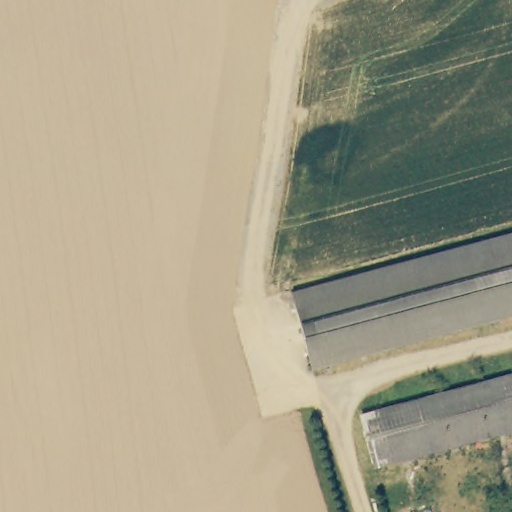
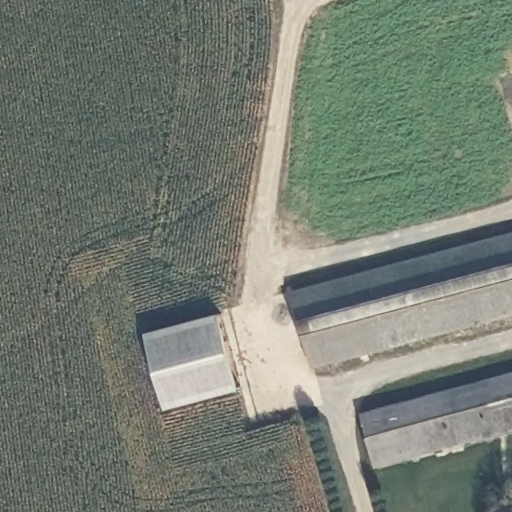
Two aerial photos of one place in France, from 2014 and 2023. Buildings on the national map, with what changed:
unchanged [(512,235),(512,315),(311,369),(291,294),(312,289),(512,235)]
new [(167,407),(148,333),(219,313),(240,388),(167,407)]
unchanged [(363,422),(512,381),(512,431),(377,468),(363,422)]

